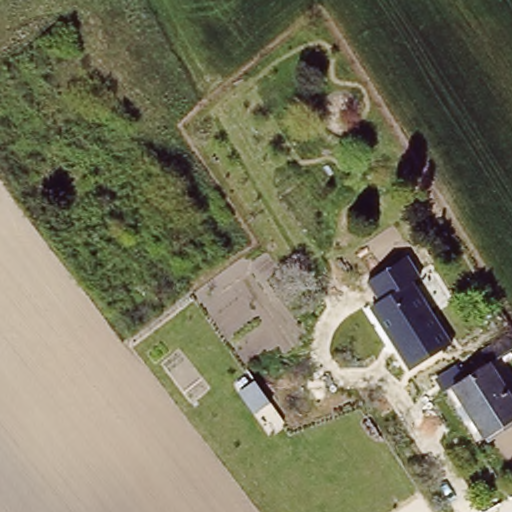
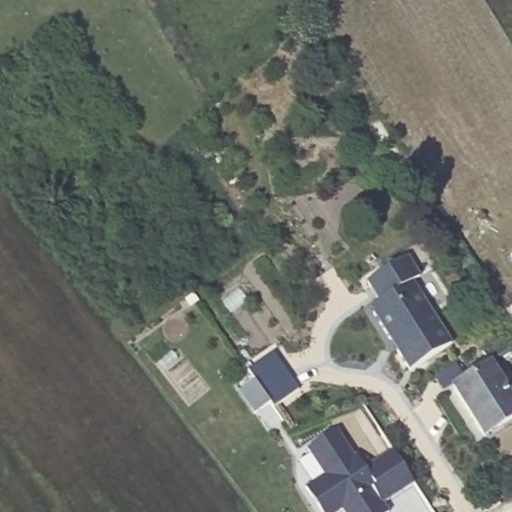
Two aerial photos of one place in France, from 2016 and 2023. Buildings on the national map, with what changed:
unchanged [(421,276),(410,283),(451,345),(414,371),(371,308),(378,306),(364,282),(406,254),(421,276)]
new [(247,368),(272,351),(299,388),(274,406),(270,401),(255,412),(239,390),(255,379),(247,368)]
unchanged [(493,368),(496,373),(512,398),(512,428),(488,443),(458,397),(455,392),(493,368)]
new [(324,474),(307,447),(337,429),(354,456),(356,454),(365,468),(394,450),(415,483),(383,503),(389,512),(344,512),(342,509),(337,512),(321,512),(305,487),(324,474)]

